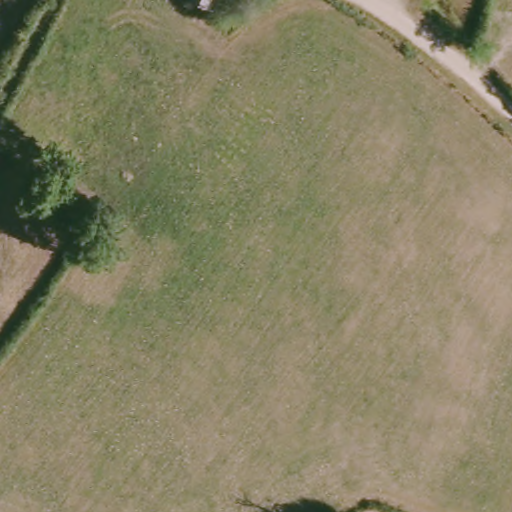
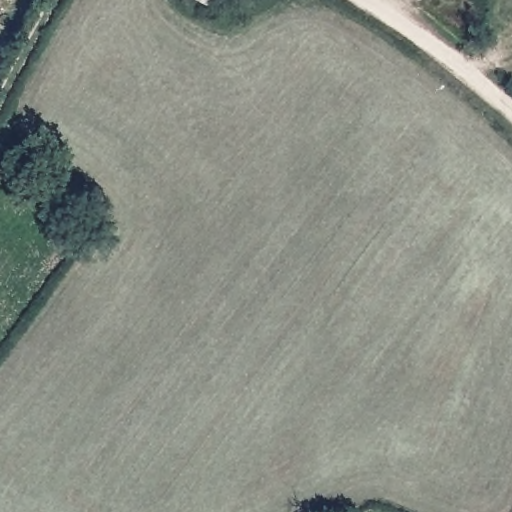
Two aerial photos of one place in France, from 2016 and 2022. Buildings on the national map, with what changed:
unchanged [(200,0),(225,0),(220,10),(200,0)]

